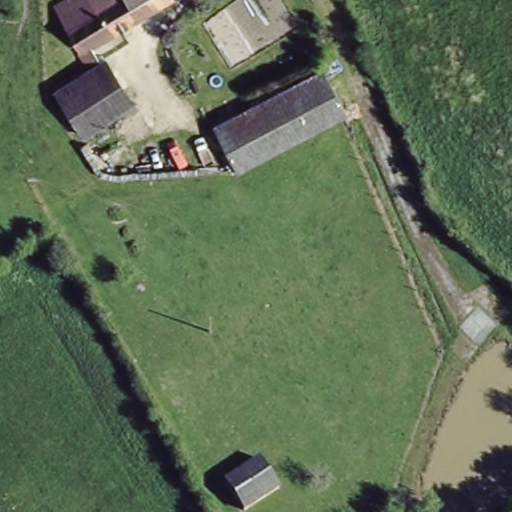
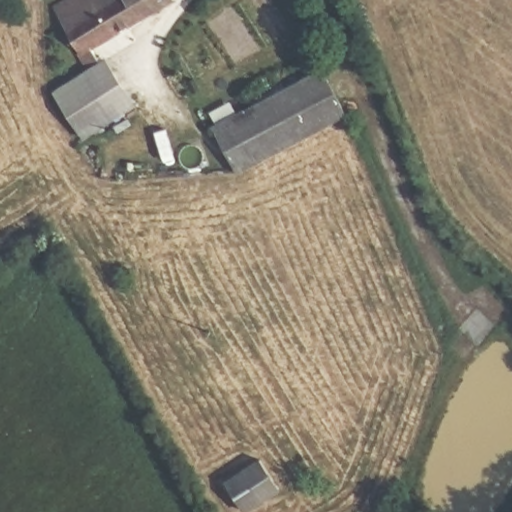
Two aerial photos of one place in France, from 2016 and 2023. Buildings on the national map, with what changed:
unchanged [(72,0),(171,0),(172,2),(92,51),(62,7),(72,0)]
unchanged [(334,60),(357,110),(243,175),(215,136),(334,60)]
unchanged [(80,137),(57,99),(95,76),(128,107),(80,137)]
unchanged [(223,481),(260,460),(280,491),(249,512),(243,512),(223,481)]

